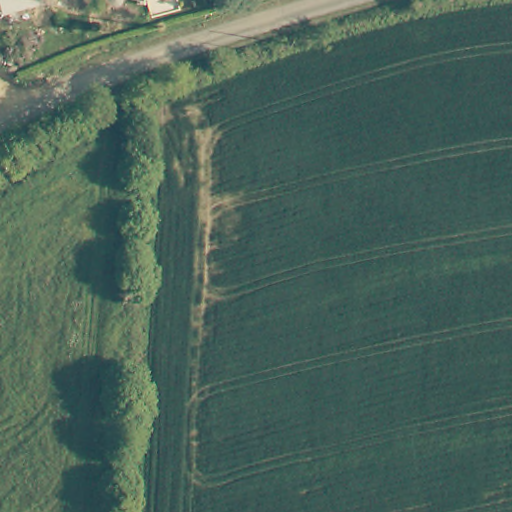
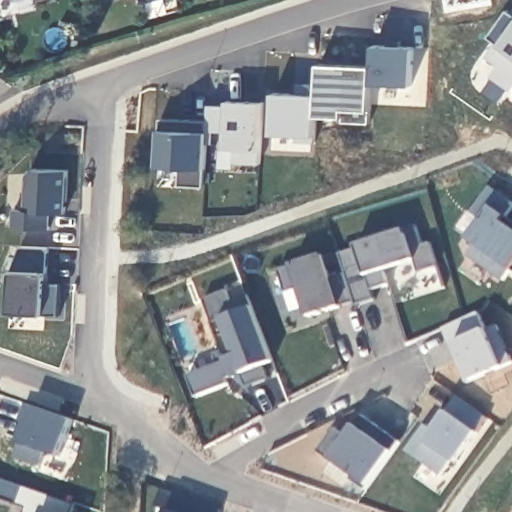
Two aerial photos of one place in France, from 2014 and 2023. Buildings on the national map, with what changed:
unchanged [(39,0),(43,0),(39,1),(39,0)]
new [(512,11),(512,88),(492,74),(500,64),(488,55),(497,41),(489,36),(509,9),(512,11)]
new [(414,48),(412,85),(373,83),(374,46),(414,48)]
new [(299,92),(299,81),(319,82),(316,140),(297,139),(297,133),(273,132),(275,91),(299,92)]
new [(229,98),(264,100),(261,162),(235,160),(236,147),(227,146),(228,129),(209,128),(210,102),(229,103),(229,98)]
new [(180,183),(182,165),(159,163),(162,116),(209,118),(206,184),(180,183)]
new [(213,129),(212,141),(208,141),(209,128),(213,129)]
new [(14,227),(16,210),(35,210),(38,167),(69,171),(66,214),(52,212),(50,228),(14,227)]
new [(470,256),(477,245),(469,239),(483,219),(474,212),(491,187),(512,202),(512,209),(503,221),(512,228),(512,268),(511,269),(504,279),(470,256)]
new [(389,283),(373,289),(376,298),(357,304),(340,252),(358,247),(356,244),(416,224),(423,243),(430,241),(438,265),(419,271),(413,256),(383,265),(385,269),(389,283)]
new [(45,313),(11,312),(13,271),(22,247),(48,250),(46,272),(46,283),(61,283),(59,314),(45,313)]
new [(323,252),(331,277),(346,271),(356,300),(310,315),(301,287),(286,291),(278,267),(323,252)]
new [(383,265),(413,256),(415,258),(385,268),(383,265)]
new [(227,360),(205,300),(227,292),(231,302),(249,296),(252,307),(273,362),(265,365),(269,378),(248,387),(243,375),(235,378),(234,376),(227,378),(229,384),(198,396),(190,376),(217,365),(227,360)]
new [(479,312),(486,329),(497,325),(512,359),(512,362),(467,382),(443,327),(465,318),(479,312)]
new [(435,430),(448,412),(459,397),(489,419),(478,433),(457,463),(454,461),(442,476),(408,451),(427,425),(435,430)]
new [(25,401),(73,417),(59,455),(45,450),(40,463),(14,455),(26,421),(19,418),(25,401)]
new [(401,442),(393,452),(370,486),(367,490),(353,479),(355,475),(332,460),(321,452),(337,428),(349,435),(355,426),(362,416),(401,442)]
new [(166,508),(155,504),(161,486),(221,507),(219,512),(165,512),(166,508)]

